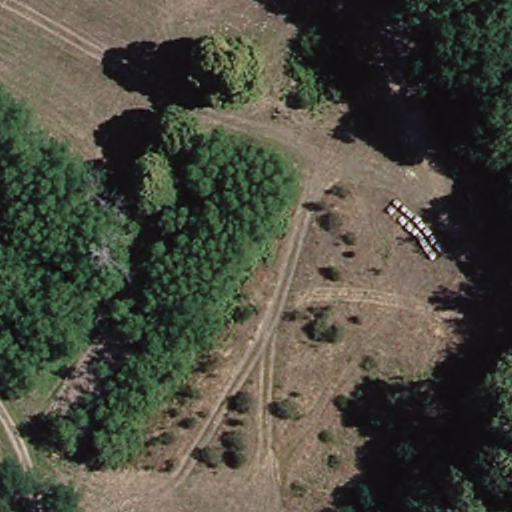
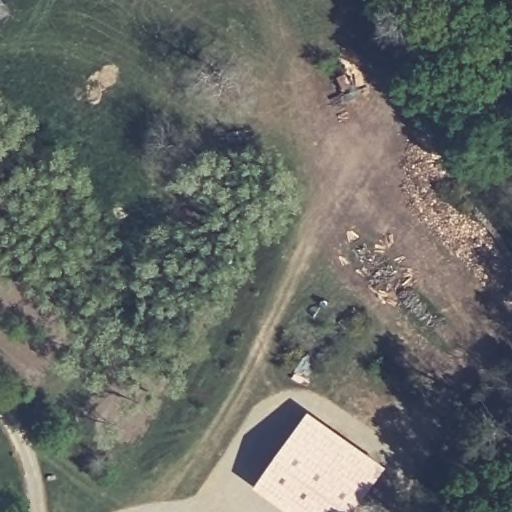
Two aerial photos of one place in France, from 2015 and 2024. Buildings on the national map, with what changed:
new [(356,512),(295,512),(257,485),(312,408),(390,464),(356,512)]

